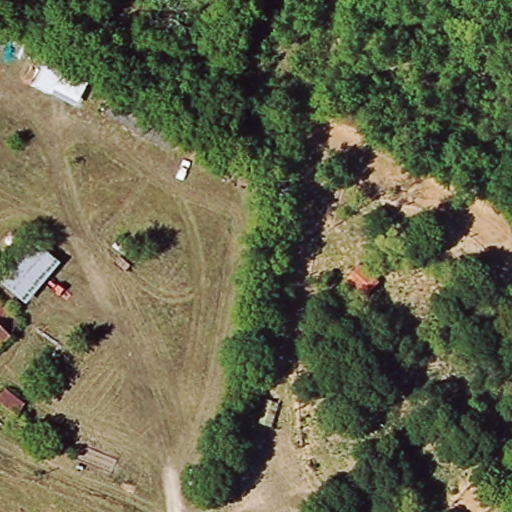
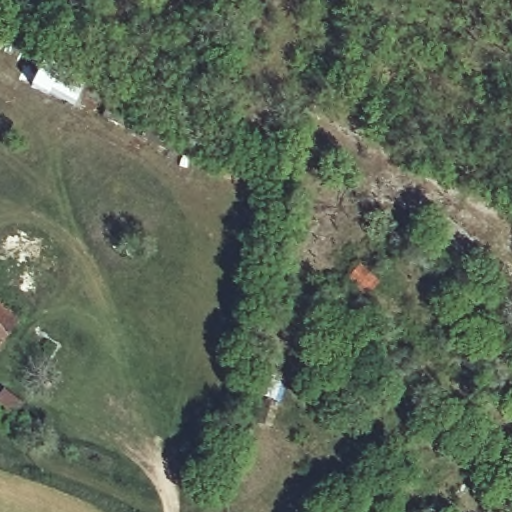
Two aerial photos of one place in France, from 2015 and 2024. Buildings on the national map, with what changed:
unchanged [(72,112),(30,87),(42,63),(83,83),(72,112)]
unchanged [(103,121),(115,96),(188,132),(176,154),(103,121)]
unchanged [(20,307),(0,288),(0,278),(31,242),(57,262),(20,307)]
unchanged [(348,284),(362,267),(383,283),(369,301),(348,284)]
unchanged [(23,322),(10,338),(0,349),(0,303),(23,322)]
unchanged [(258,427),(266,401),(284,407),(276,432),(258,427)]

